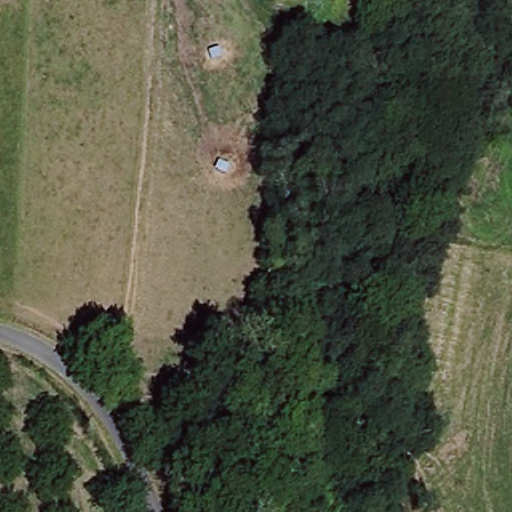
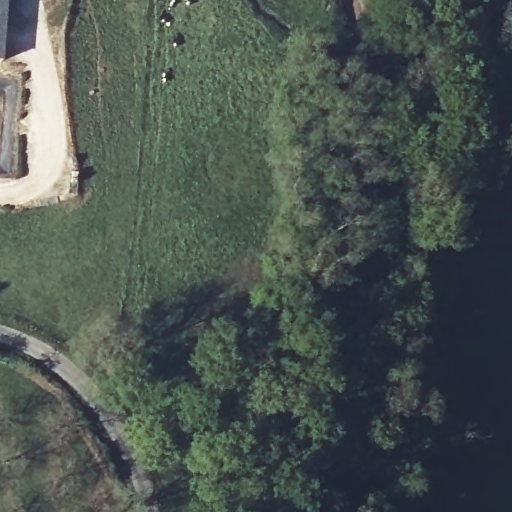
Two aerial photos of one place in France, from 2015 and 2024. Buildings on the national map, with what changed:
new [(7,56),(0,55),(0,0),(10,0),(7,56)]

